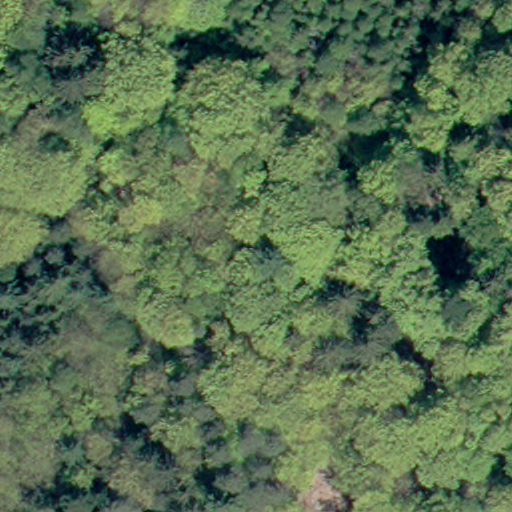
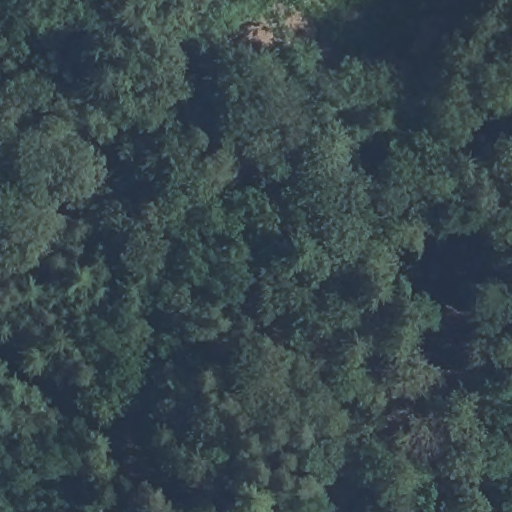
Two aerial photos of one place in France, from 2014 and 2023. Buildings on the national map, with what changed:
[]

